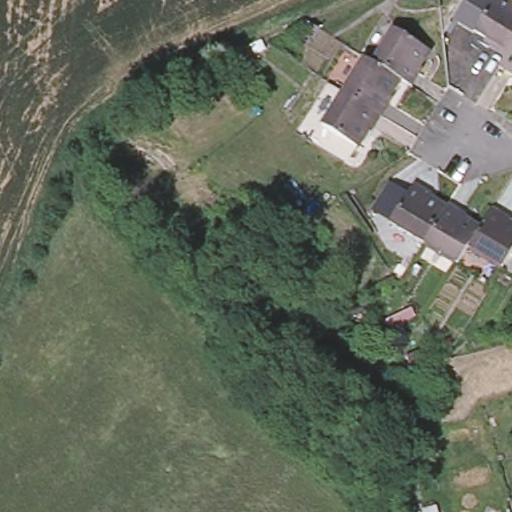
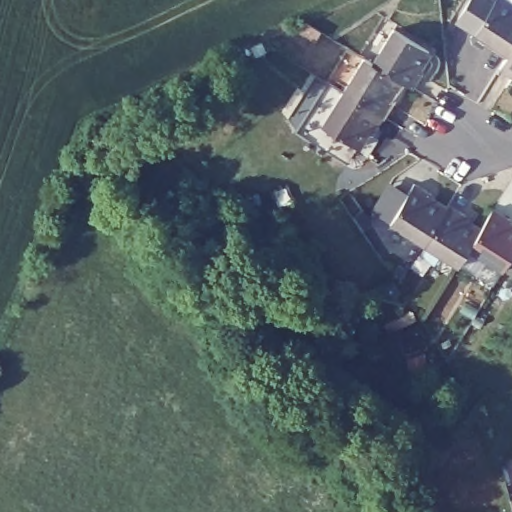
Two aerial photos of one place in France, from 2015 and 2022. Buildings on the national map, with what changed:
unchanged [(457,16),(466,0),(512,0),(512,73),(498,63),(505,52),(488,42),(491,37),(475,27),(457,16)]
unchanged [(326,37),(320,46),(293,29),(305,24),(326,37)]
unchanged [(392,24),(427,46),(417,62),(422,67),(411,82),(397,75),(370,58),(392,24)]
unchanged [(388,93),(392,97),(382,112),(342,88),(363,54),(370,58),(397,75),(388,93)]
unchanged [(320,122),(342,88),(382,112),(371,130),(367,127),(356,143),(320,122)]
unchanged [(500,262),(467,240),(457,257),(422,235),(388,213),(414,174),(430,185),(427,188),(445,200),(447,195),(465,206),(462,210),(479,221),(492,201),(508,210),(507,215),(512,218),(512,244),(500,262)]

